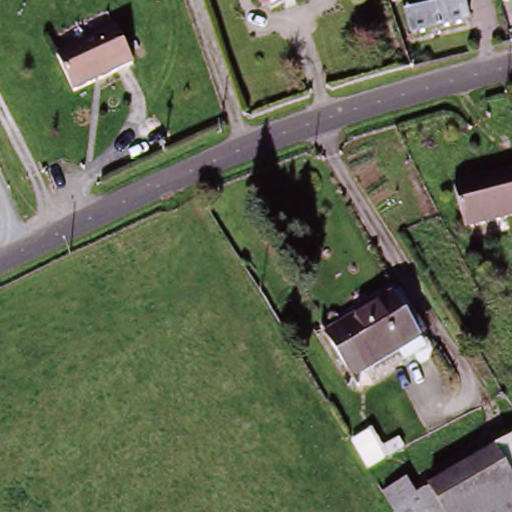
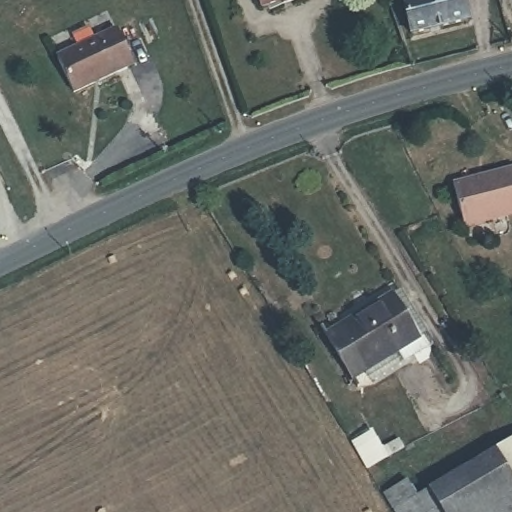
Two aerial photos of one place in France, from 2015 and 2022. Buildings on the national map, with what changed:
unchanged [(266,0),(280,0),(267,4),(266,0)]
unchanged [(417,30),(410,0),(468,0),(472,17),(417,30)]
unchanged [(132,67),(75,92),(58,57),(116,32),(132,67)]
unchanged [(492,169),(512,164),(512,212),(464,224),(453,182),(475,176),(476,179),(495,173),(492,169)]
unchanged [(350,381),(322,337),(390,295),(417,340),(425,352),(404,365),(396,353),(350,381)]
unchanged [(400,507),(390,489),(415,473),(426,492),(512,441),(512,512),(393,512),(400,507)]

